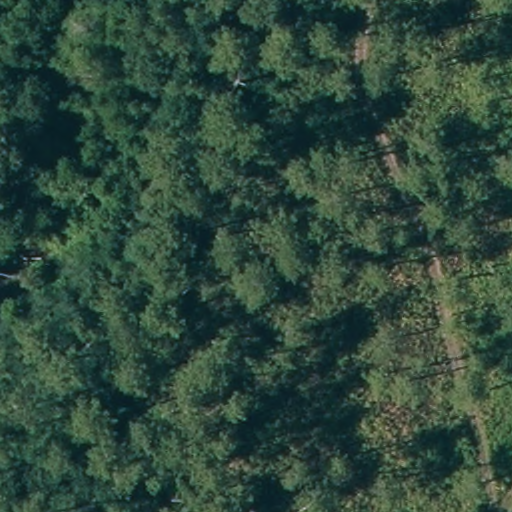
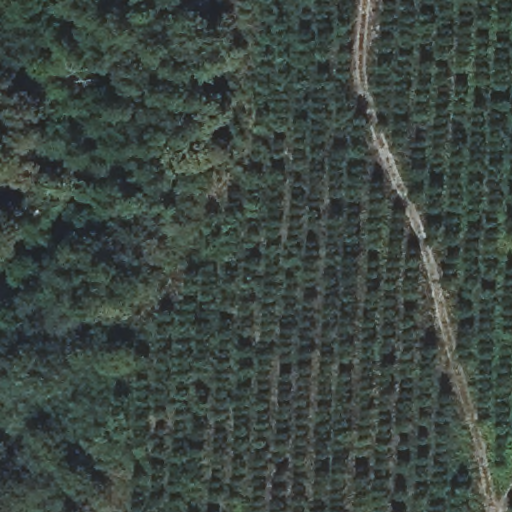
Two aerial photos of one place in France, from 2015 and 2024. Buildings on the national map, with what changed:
[]

